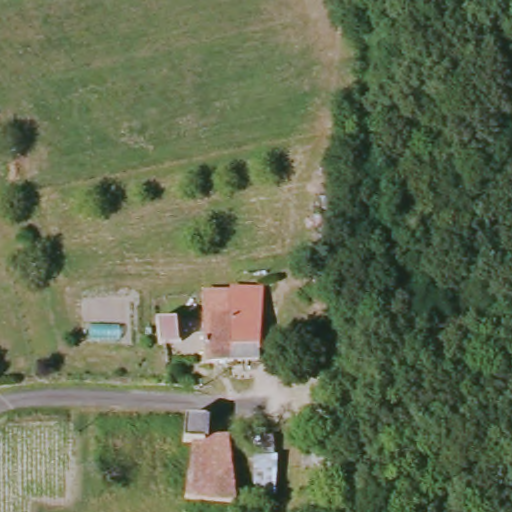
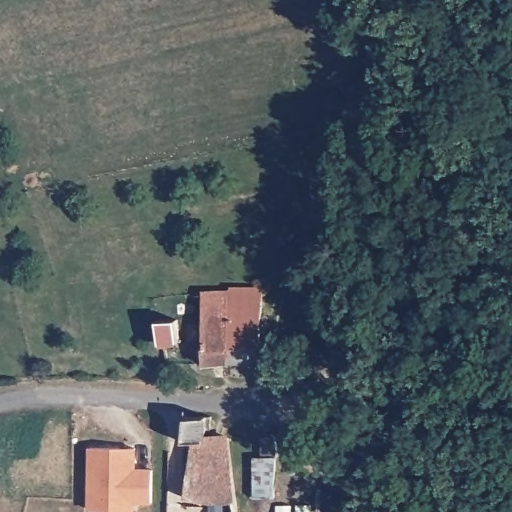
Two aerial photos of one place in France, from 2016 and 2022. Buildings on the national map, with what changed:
unchanged [(230,362),(231,293),(230,287),(265,287),(261,359),(230,362)]
unchanged [(206,366),(203,294),(231,293),(230,362),(206,366)]
unchanged [(165,346),(158,346),(156,320),(178,319),(180,345),(165,346)]
unchanged [(190,498),(197,443),(188,443),(191,417),(211,417),(212,440),(234,439),(241,498),(190,498)]
unchanged [(320,457),(322,442),(345,446),(339,461),(320,457)]
new [(90,510),(90,447),(138,447),(138,468),(153,469),(153,502),(136,503),(136,512),(105,512),(105,511),(90,510)]

